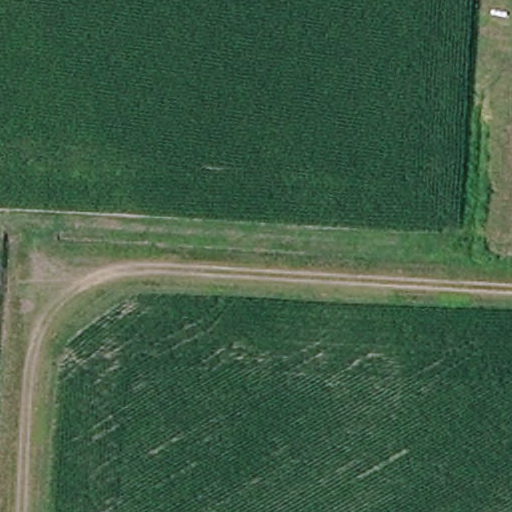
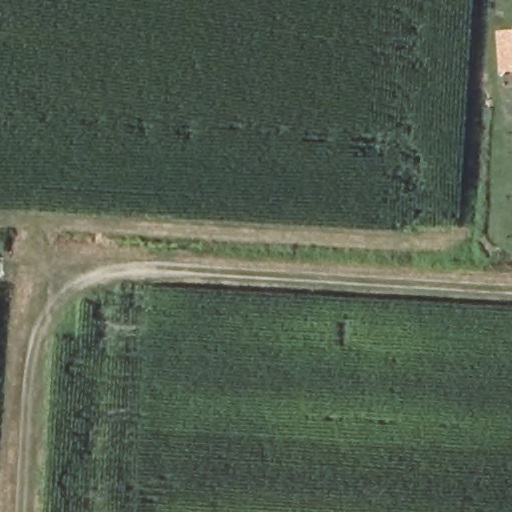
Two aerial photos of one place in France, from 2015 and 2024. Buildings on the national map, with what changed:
new [(512,29),(512,70),(499,71),(496,30),(512,29)]

